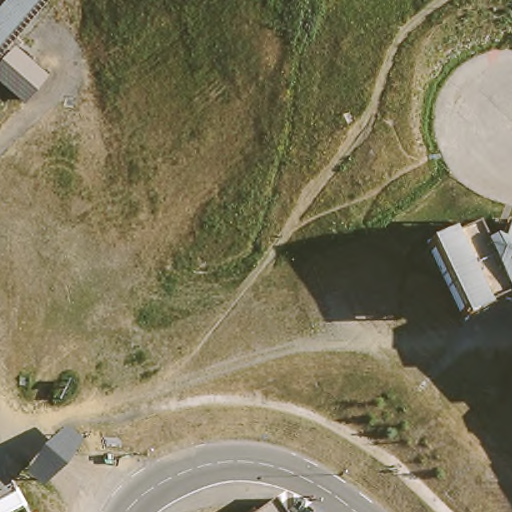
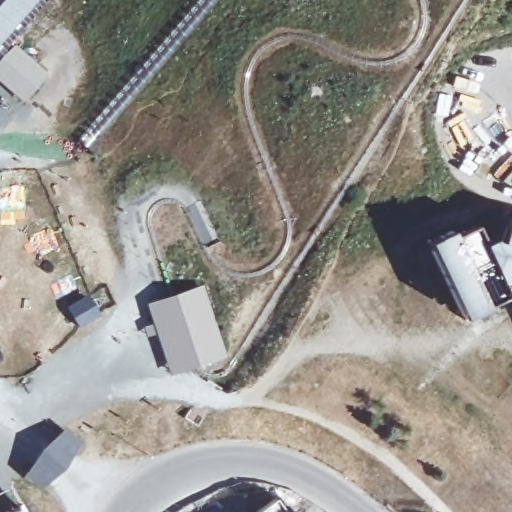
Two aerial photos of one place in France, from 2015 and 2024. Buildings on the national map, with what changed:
unchanged [(48,73),(25,101),(0,81),(0,0),(46,0),(10,41),(48,73)]
unchanged [(510,311),(510,306),(493,304),(485,310),(488,317),(468,329),(465,322),(455,328),(417,270),(424,264),(420,256),(430,248),(432,251),(443,245),(449,254),(460,248),(465,257),(477,249),(484,253),(489,234),(498,237),(500,231),(512,234),(512,311),(510,311)]
new [(171,295),(204,285),(227,356),(196,367),(170,376),(147,304),(171,295)]
demolished [(78,442),(47,480),(30,467),(61,427),(78,442)]
new [(65,428),(82,443),(62,466),(39,486),(25,474),(45,452),(65,428)]
unchanged [(25,512),(0,512),(0,486),(10,480),(25,512)]
unchanged [(265,493),(279,512),(239,512),(265,493)]

